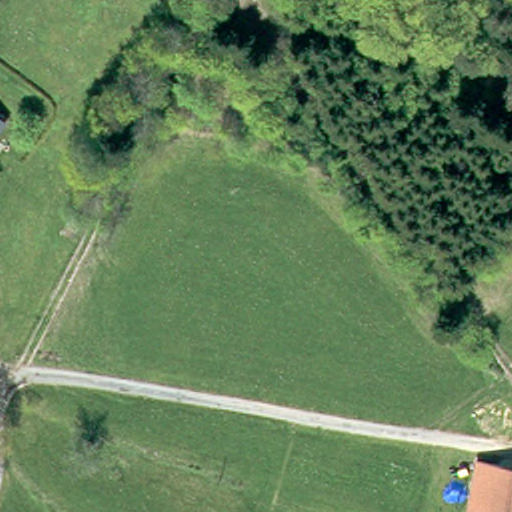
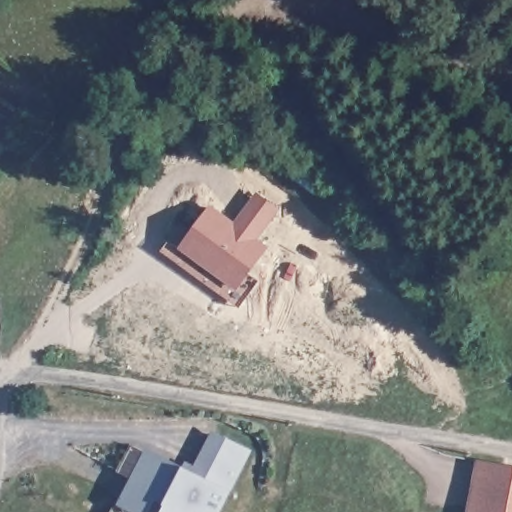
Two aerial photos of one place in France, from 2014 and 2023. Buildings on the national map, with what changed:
new [(0,126),(0,116),(5,119),(0,126)]
new [(233,227),(256,197),(271,209),(249,239),(263,249),(225,298),(197,277),(205,266),(179,247),(208,209),(233,227)]
new [(229,490),(219,512),(159,512),(151,508),(149,512),(130,512),(116,504),(147,447),(193,470),(213,430),(252,450),(229,490)]
unchanged [(462,482),(464,471),(477,473),(479,457),(512,462),(512,512),(472,512),(475,487),(476,485),(462,482)]

